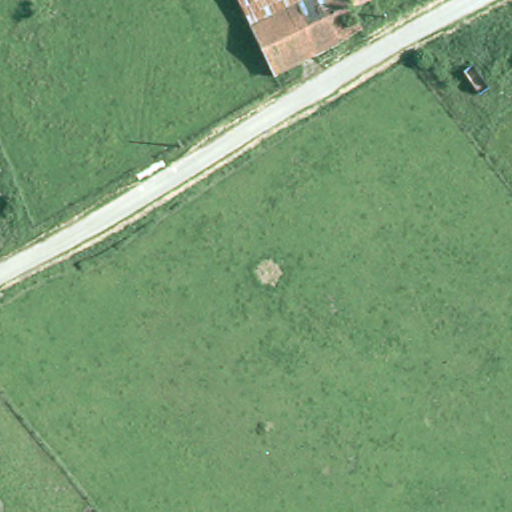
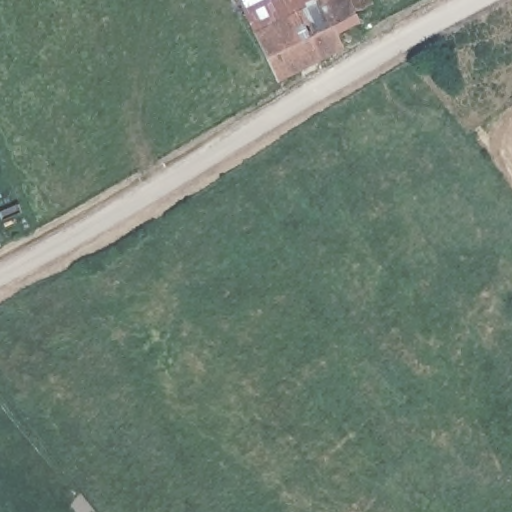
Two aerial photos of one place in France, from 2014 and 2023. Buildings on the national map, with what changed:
unchanged [(254,23),(243,0),(301,0),(254,23)]
unchanged [(277,70),(254,23),(301,0),(322,0),(342,39),(277,70)]
unchanged [(355,4),(365,25),(342,39),(322,0),(362,0),(355,4)]

